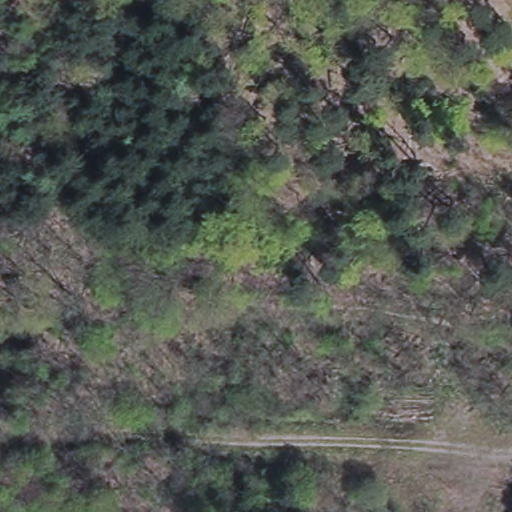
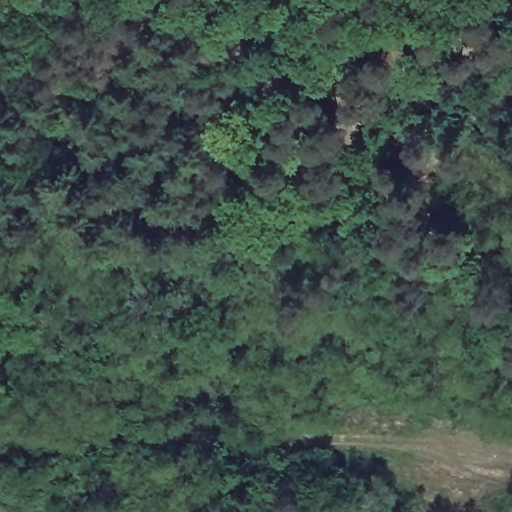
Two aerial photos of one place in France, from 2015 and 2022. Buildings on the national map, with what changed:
[]

